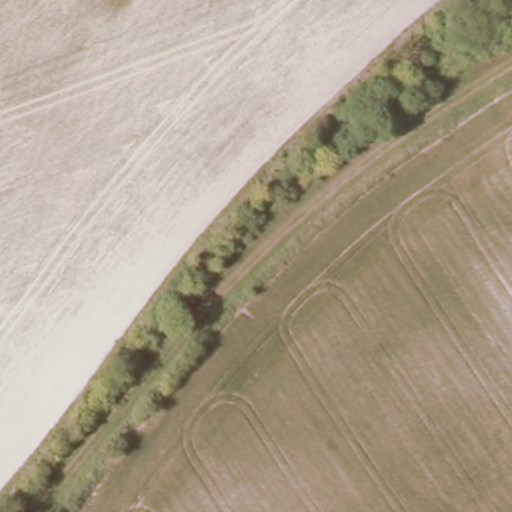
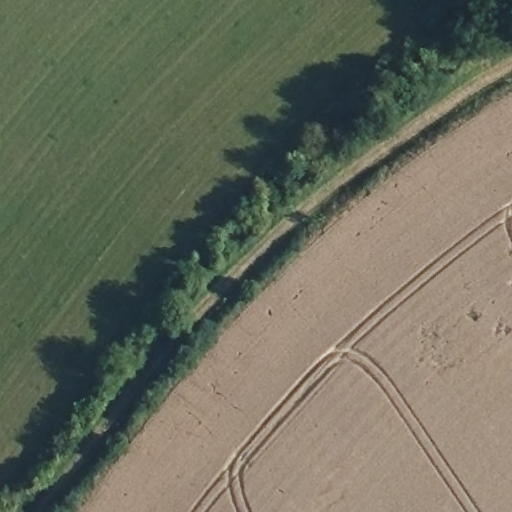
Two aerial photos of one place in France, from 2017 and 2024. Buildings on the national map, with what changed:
[]

